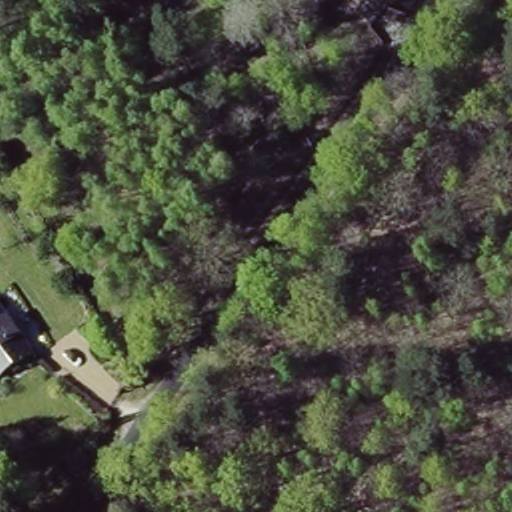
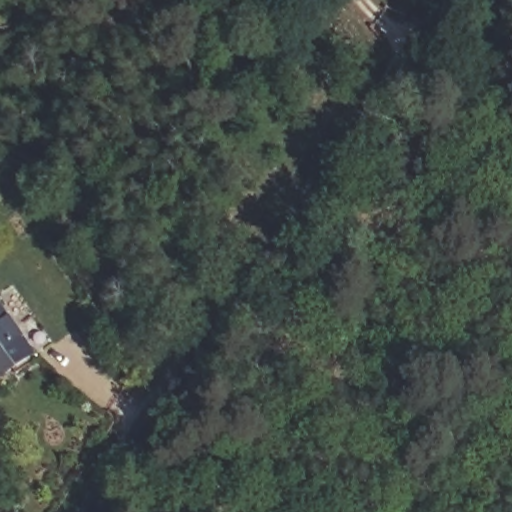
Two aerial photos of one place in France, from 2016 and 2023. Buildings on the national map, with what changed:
unchanged [(0,382),(0,310),(32,357),(0,382)]

